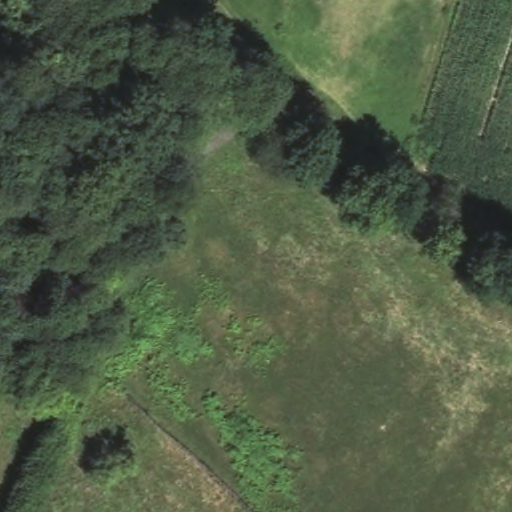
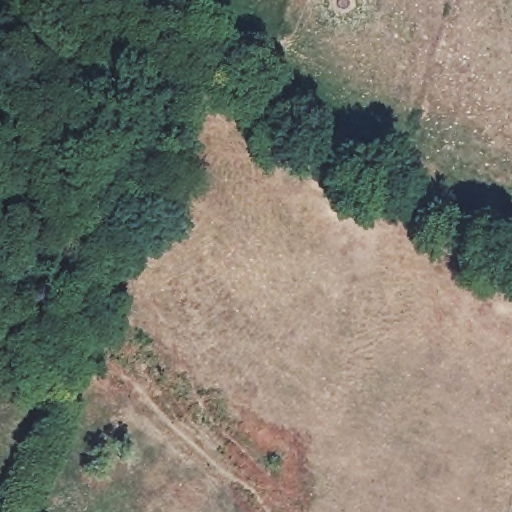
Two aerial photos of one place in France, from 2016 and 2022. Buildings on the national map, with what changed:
[]

